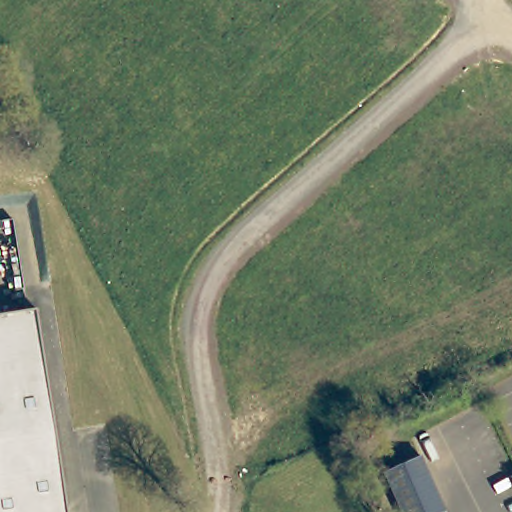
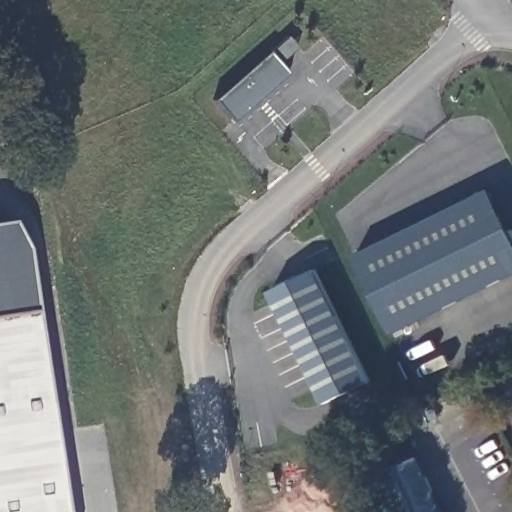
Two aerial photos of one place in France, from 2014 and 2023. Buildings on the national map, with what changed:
new [(265,53),(285,76),(229,125),(209,102),(265,53)]
new [(497,188),(512,219),(512,276),(398,331),(360,255),(497,188)]
new [(0,220),(12,218),(25,243),(36,310),(0,315),(0,220)]
new [(317,270),(371,382),(325,403),(272,293),(317,270)]
unchanged [(67,512),(0,512),(0,315),(36,310),(67,512)]
unchanged [(443,511),(443,512),(399,512),(380,471),(418,455),(443,511)]

